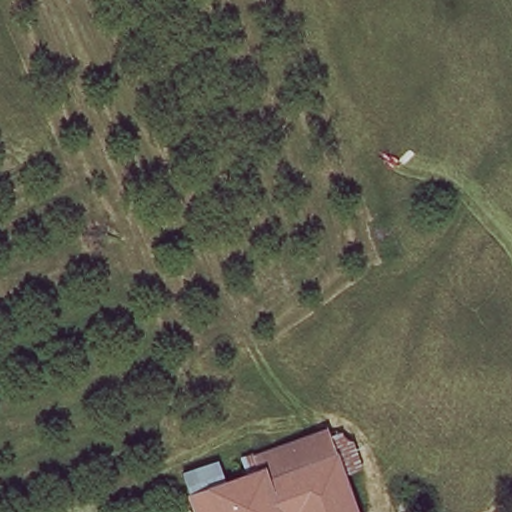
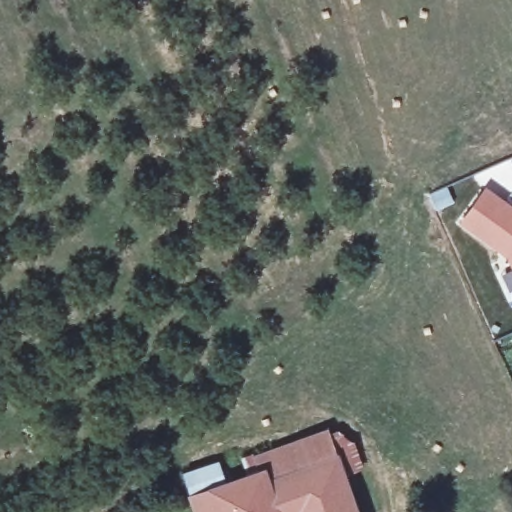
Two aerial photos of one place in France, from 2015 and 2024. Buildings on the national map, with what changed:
new [(463,222),(487,189),(512,207),(512,261),(508,254),(463,222)]
unchanged [(270,469),(265,457),(331,432),(340,458),(310,468),(273,482),(270,469)]
unchanged [(340,458),(359,512),(326,512),(310,468),(340,458)]
unchanged [(198,496),(189,472),(218,462),(227,485),(270,469),(273,482),(271,482),(280,512),(204,512),(198,496)]
unchanged [(271,482),(273,482),(310,468),(326,512),(280,512),(271,482)]

